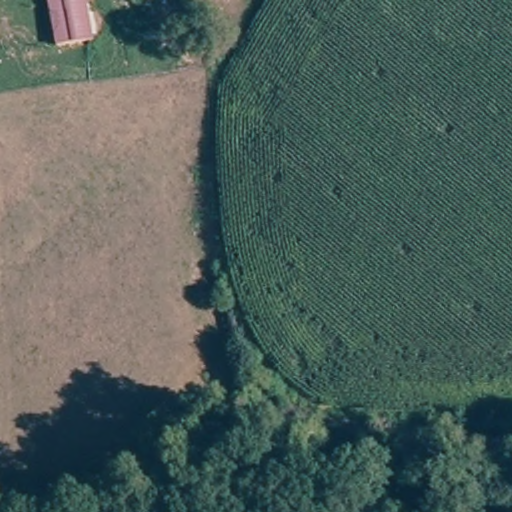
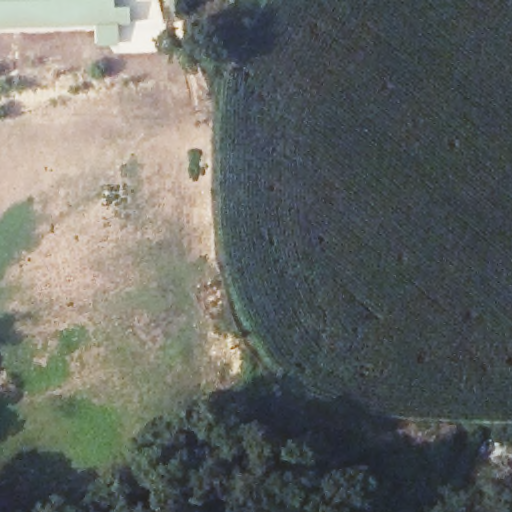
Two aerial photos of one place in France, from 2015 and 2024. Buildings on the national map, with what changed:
new [(130,6),(131,26),(120,26),(95,27),(0,31),(0,0),(116,0),(116,6),(130,6)]
demolished [(46,0),(81,0),(86,41),(51,45),(49,31),(46,0)]

